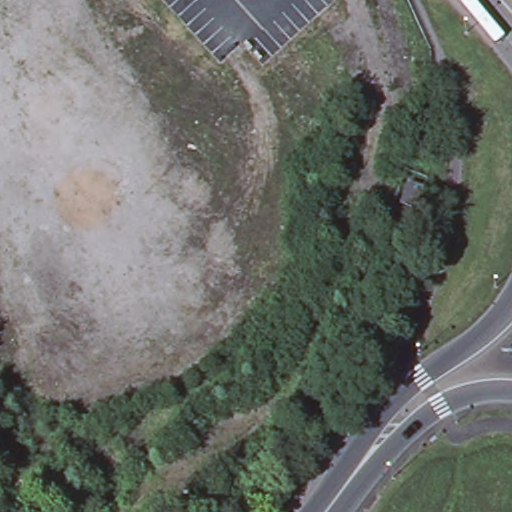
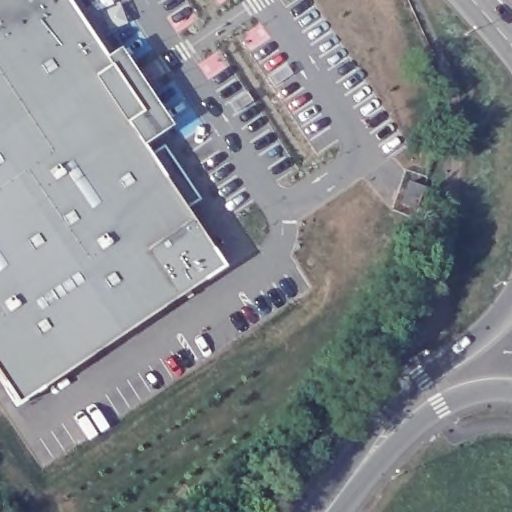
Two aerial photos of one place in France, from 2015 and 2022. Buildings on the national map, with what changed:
new [(0,0),(66,0),(104,58),(119,49),(171,127),(142,147),(148,156),(163,146),(199,201),(184,210),(223,267),(17,405),(0,379),(0,0)]
unchanged [(414,209),(409,207),(400,204),(407,182),(412,184),(421,187),(414,209)]

